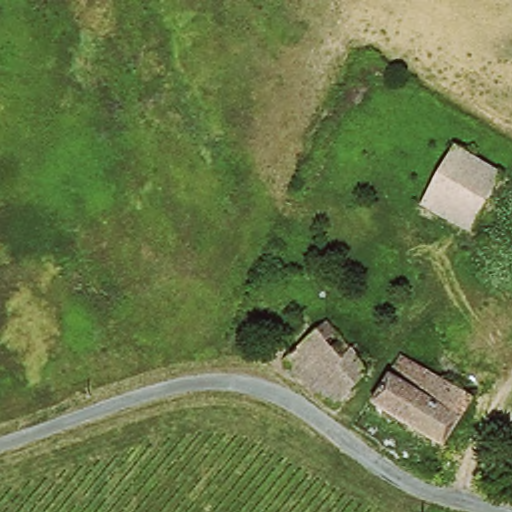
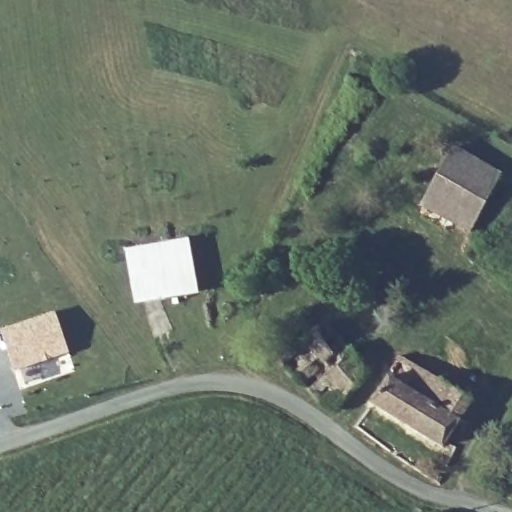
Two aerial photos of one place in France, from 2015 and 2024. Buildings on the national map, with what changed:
unchanged [(427,210),(455,151),(505,177),(475,234),(427,210)]
new [(189,239),(198,293),(134,305),(125,249),(189,239)]
new [(5,331),(60,312),(73,351),(19,370),(5,331)]
unchanged [(284,363),(325,325),(347,354),(355,348),(374,371),(366,379),(333,414),(308,392),(284,363)]
unchanged [(448,450),(377,406),(405,358),(477,402),(448,450)]

